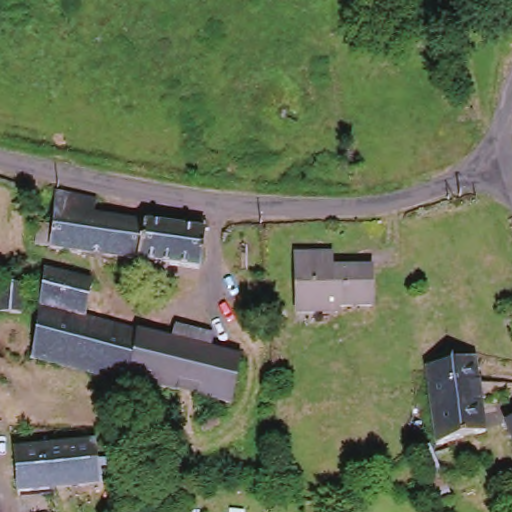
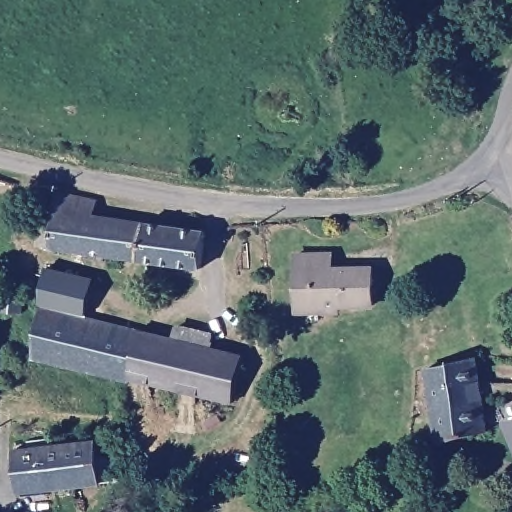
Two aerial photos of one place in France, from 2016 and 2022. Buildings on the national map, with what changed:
unchanged [(205,268),(55,248),(55,245),(40,243),(42,224),(56,225),(58,194),(100,202),(98,216),(208,230),(205,268)]
unchanged [(323,266),(368,265),(368,303),(335,305),(335,310),(295,311),(292,252),(322,252),(323,266)]
unchanged [(42,283),(44,269),(91,278),(84,315),(173,338),(176,328),(220,339),(218,349),(240,355),(230,401),(128,378),(127,380),(30,357),(42,283)]
unchanged [(3,310),(5,281),(26,282),(25,311),(3,310)]
unchanged [(440,443),(428,366),(477,359),(490,435),(440,443)]
unchanged [(512,426),(512,445),(504,429),(512,426)]
unchanged [(98,485),(15,494),(10,451),(95,444),(98,485)]

